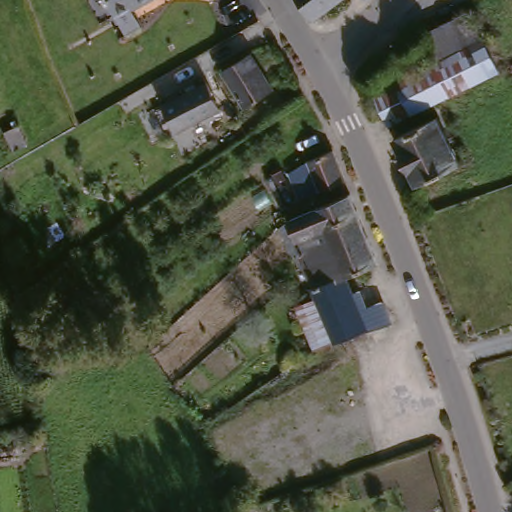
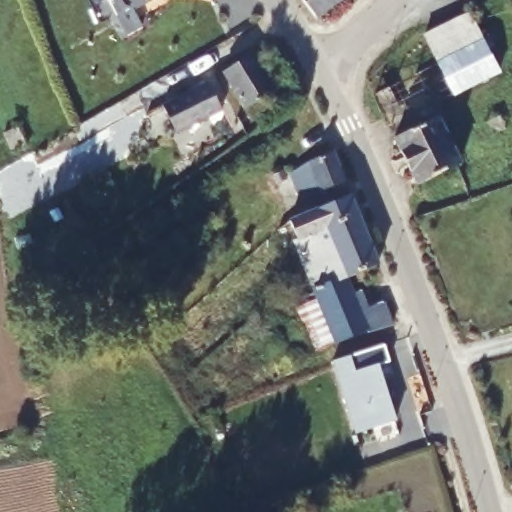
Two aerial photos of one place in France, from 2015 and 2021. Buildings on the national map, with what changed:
unchanged [(139,25),(122,33),(104,0),(147,0),(131,9),(139,25)]
unchanged [(304,0),(342,0),(317,19),(304,0)]
unchanged [(421,39),(466,17),(479,45),(434,65),(421,39)]
unchanged [(493,77),(386,129),(370,95),(434,65),(479,45),(493,77)]
unchanged [(224,70),(252,53),(275,89),(247,106),(224,70)]
unchanged [(159,109),(204,86),(217,113),(171,135),(159,109)]
unchanged [(392,141),(436,120),(457,168),(415,187),(392,141)]
unchanged [(316,196),(298,204),(287,175),(299,168),(313,160),(330,153),(342,185),(316,196)]
unchanged [(287,240),(292,237),(286,220),(299,214),(308,210),(347,194),(355,212),(330,222),(322,225),(327,240),(313,245),(293,254),(287,240)]
unchanged [(343,277),(309,290),(293,254),(313,245),(327,240),(322,225),(330,222),(355,212),(361,226),(376,264),(343,277)]
unchanged [(348,292),(370,285),(376,302),(380,300),(390,322),(309,352),(291,306),(312,299),(309,290),(343,277),(348,292)]
new [(390,360),(379,363),(397,420),(356,434),(333,360),(385,344),(390,360)]

